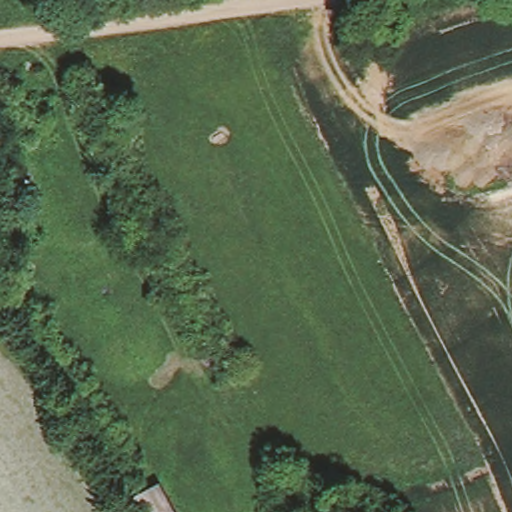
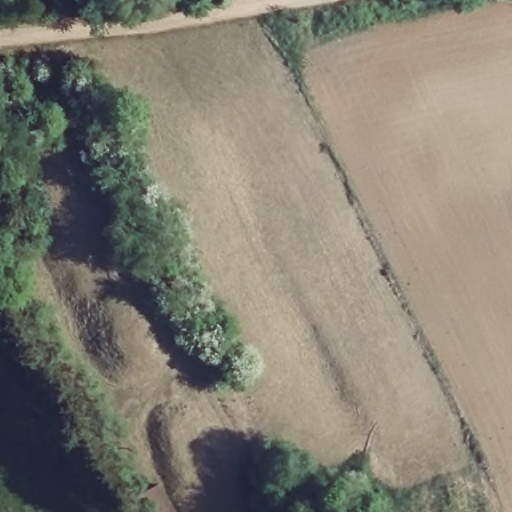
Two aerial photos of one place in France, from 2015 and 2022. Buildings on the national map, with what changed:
unchanged [(160,484),(175,512),(143,512),(135,497),(160,484)]

